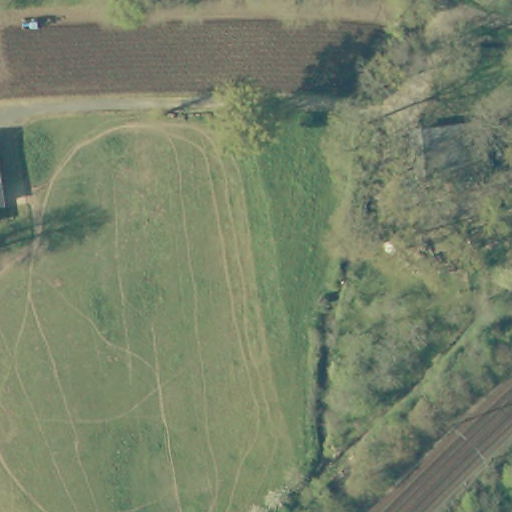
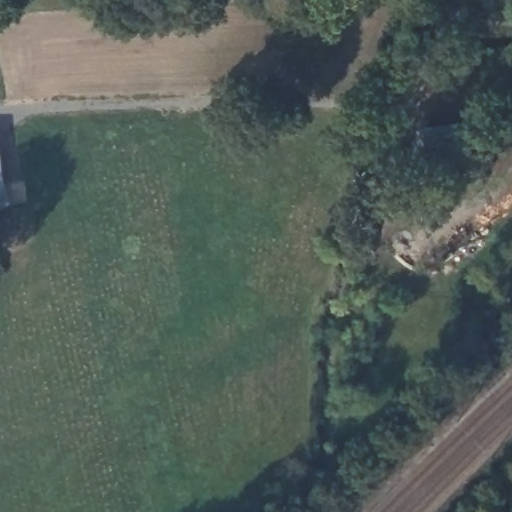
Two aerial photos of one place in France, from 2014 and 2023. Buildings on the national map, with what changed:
unchanged [(481,111),(486,159),(425,166),(420,118),(481,111)]
unchanged [(5,199),(0,199),(0,167),(5,199)]

